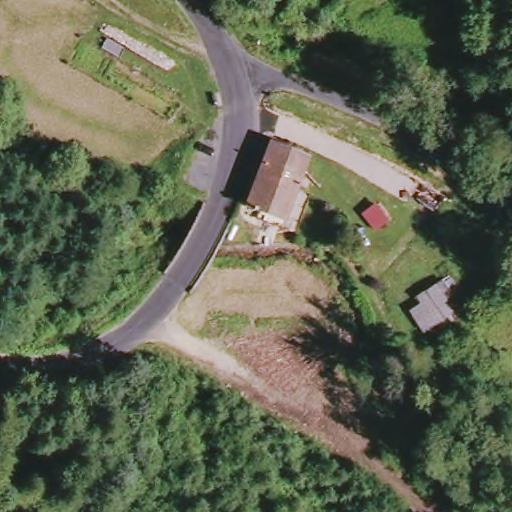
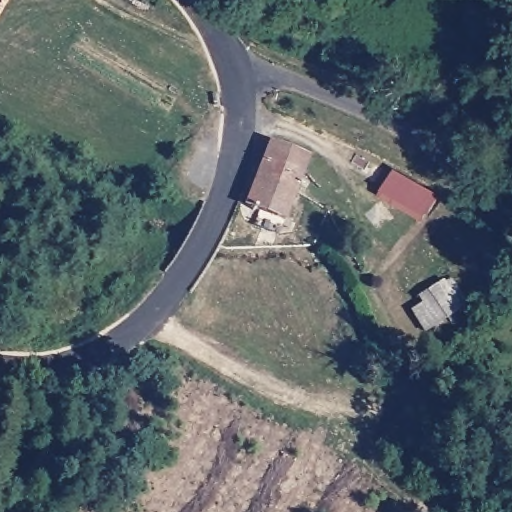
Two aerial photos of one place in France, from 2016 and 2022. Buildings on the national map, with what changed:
unchanged [(298,195),(260,177),(274,144),(311,161),(298,195)]
new [(437,195),(420,222),(378,197),(395,170),(437,195)]
unchanged [(260,177),(298,195),(286,222),(251,205),(260,177)]
unchanged [(472,310),(423,333),(411,312),(421,306),(417,298),(455,280),(472,310)]

